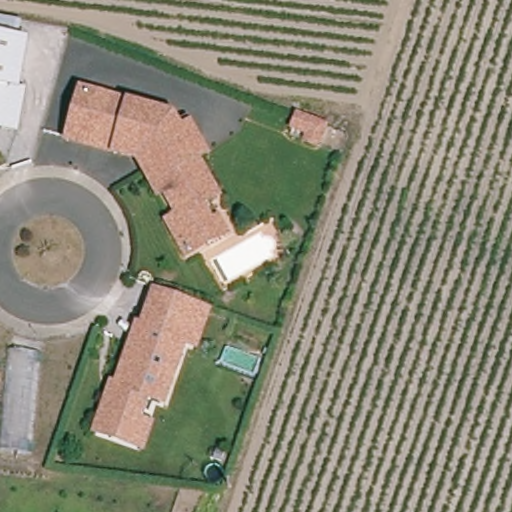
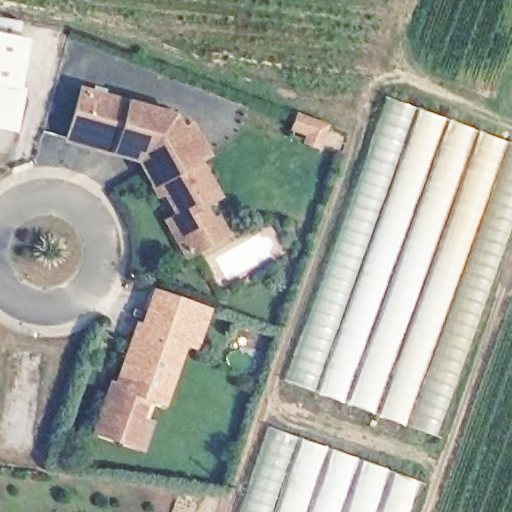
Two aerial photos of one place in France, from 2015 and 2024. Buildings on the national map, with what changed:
unchanged [(12,123),(0,121),(0,27),(13,30),(4,79),(19,82),(12,123)]
unchanged [(220,229),(203,239),(182,251),(168,227),(163,217),(173,212),(158,187),(152,190),(132,156),(63,135),(77,87),(167,114),(175,127),(183,122),(200,150),(191,155),(212,191),(196,200),(207,219),(213,216),(220,229)]
new [(340,231),(364,161),(384,97),(445,117),(512,143),(512,231),(499,261),(465,363),(435,436),(403,426),(283,380),(310,315),(340,231)]
new [(296,112),(329,125),(320,149),(299,142),(301,137),(288,131),(296,112)]
unchanged [(117,435),(95,427),(106,397),(112,380),(117,382),(151,283),(158,286),(167,289),(207,302),(207,303),(194,343),(184,340),(163,400),(148,394),(139,418),(149,421),(141,443),(117,435)]
demolished [(4,346),(35,348),(27,449),(0,447),(0,388),(4,346)]
new [(419,482),(409,512),(238,512),(268,426),(419,482)]

